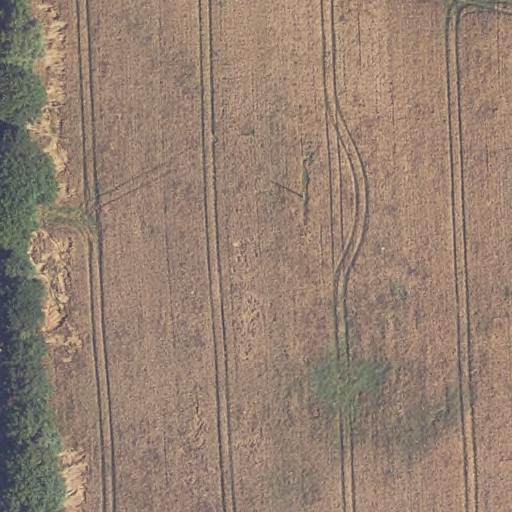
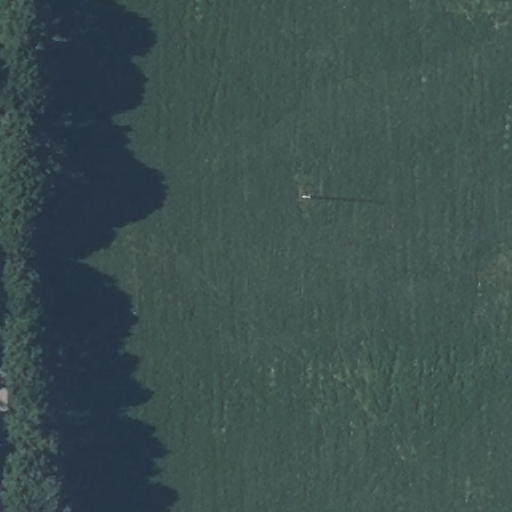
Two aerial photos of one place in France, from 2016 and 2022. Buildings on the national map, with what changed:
[]

